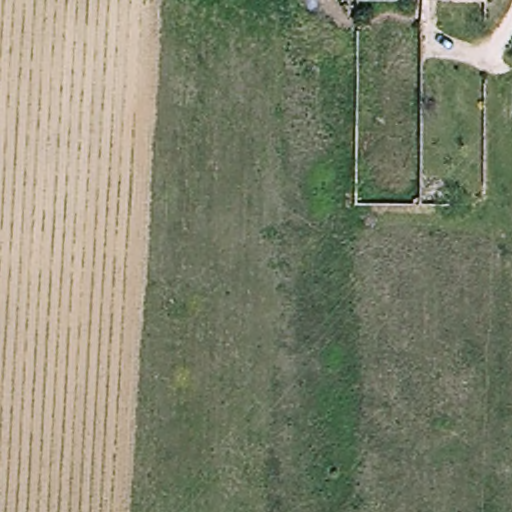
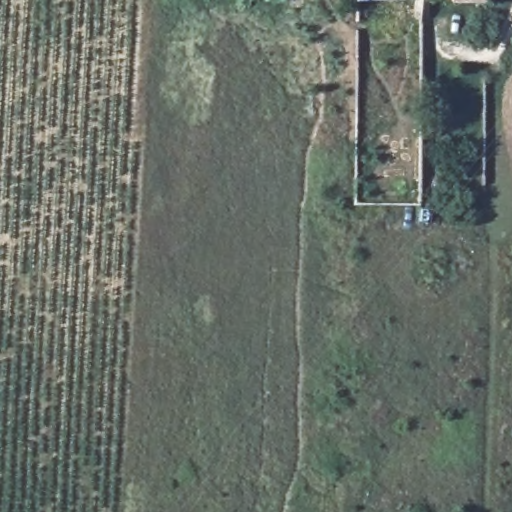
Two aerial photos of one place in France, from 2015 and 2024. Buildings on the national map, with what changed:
unchanged [(485,6),(454,6),(454,0),(485,0),(485,6)]

